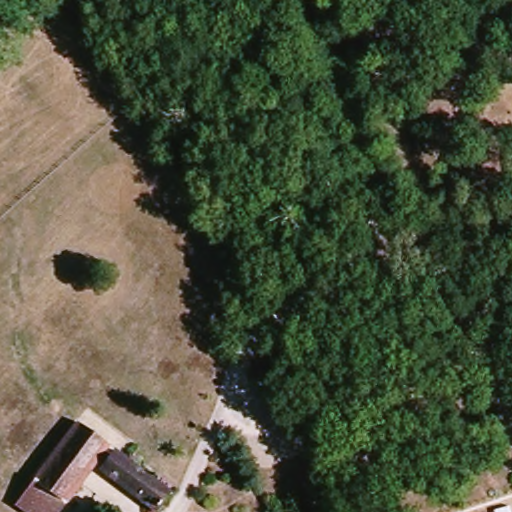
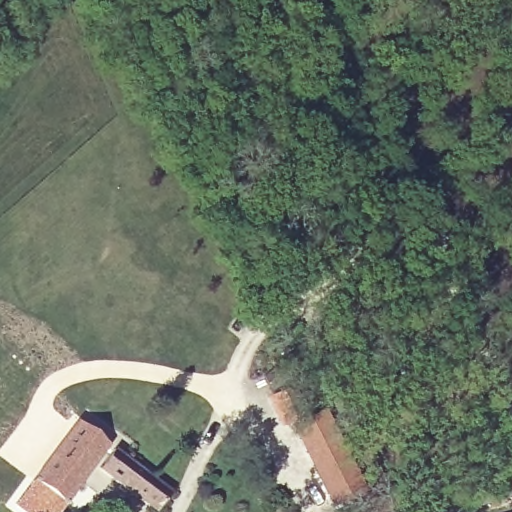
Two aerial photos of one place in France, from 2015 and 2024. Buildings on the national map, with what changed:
new [(320,484),(327,481),(322,471),(315,474),(302,448),(306,446),(297,424),(322,412),(362,492),(331,507),(320,484)]
unchanged [(108,451),(67,504),(37,483),(79,428),(108,451)]
unchanged [(116,453),(176,496),(163,512),(157,512),(102,473),(116,453)]
unchanged [(67,504),(62,512),(31,512),(22,505),(37,483),(67,504)]

